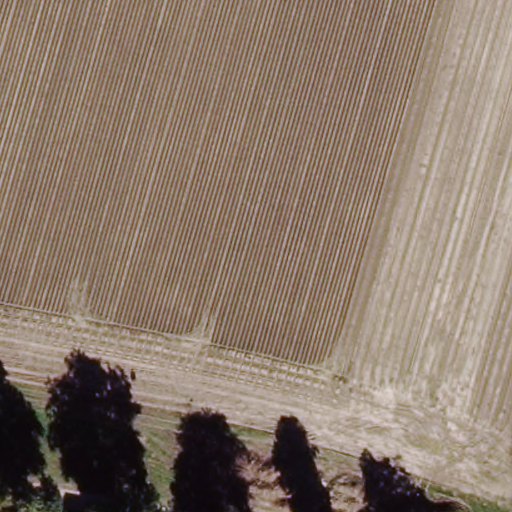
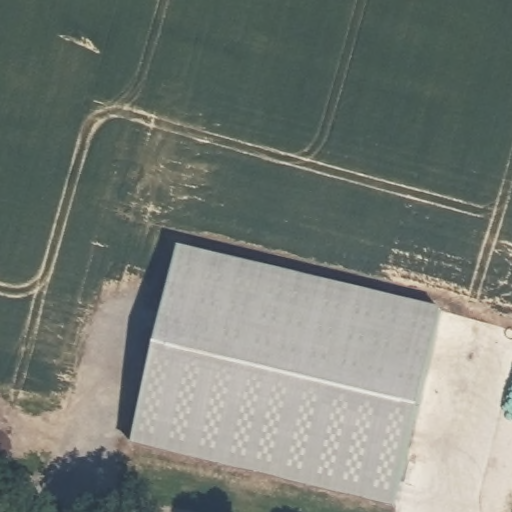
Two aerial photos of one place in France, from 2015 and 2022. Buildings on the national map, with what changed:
new [(443,310),(395,509),(133,446),(180,247),(443,310)]

